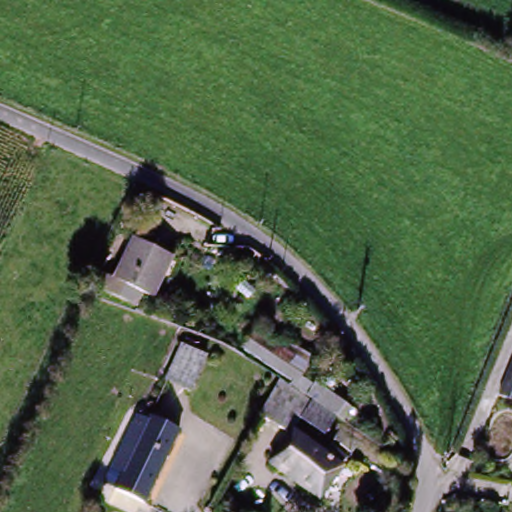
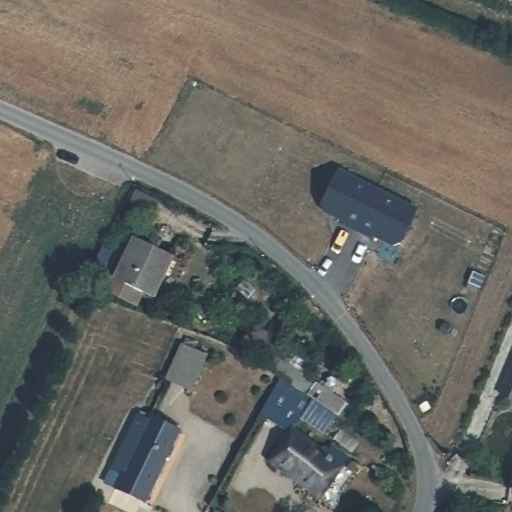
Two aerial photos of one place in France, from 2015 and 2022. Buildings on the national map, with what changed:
new [(419,213),(402,246),(395,248),(375,238),(373,241),(343,226),(345,223),(324,213),(322,206),(338,172),(419,213)]
unchanged [(112,278),(133,233),(170,252),(150,296),(112,278)]
unchanged [(300,381),(313,389),(315,386),(351,411),(342,423),(337,419),(332,426),(324,437),(299,419),(307,410),(311,404),(284,385),(287,380),(242,351),(248,342),(251,339),(282,351),(286,345),(312,362),(300,381)]
unchanged [(168,382),(186,346),(211,357),(194,394),(168,382)]
unchanged [(512,354),(512,403),(495,397),(512,354)]
unchanged [(342,467),(313,503),(264,465),(286,438),(255,415),(270,387),(275,378),(284,385),(311,404),(307,410),(299,419),(288,432),(324,462),(329,456),(335,450),(347,461),(342,467)]
unchanged [(140,501),(111,487),(112,485),(102,481),(135,413),(145,418),(147,413),(176,427),(140,501)]
unchanged [(353,440),(359,445),(352,455),(334,442),(341,432),(342,432),(353,440)]

